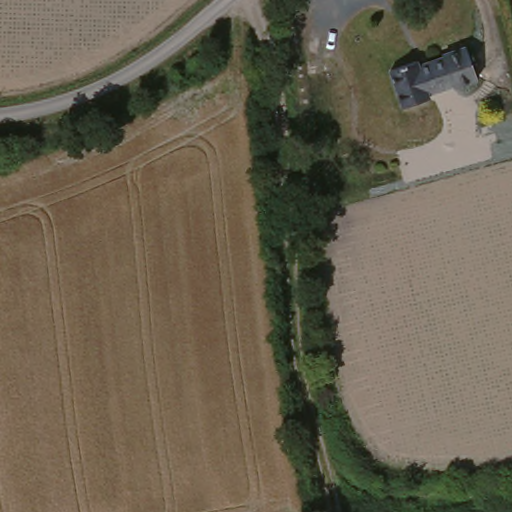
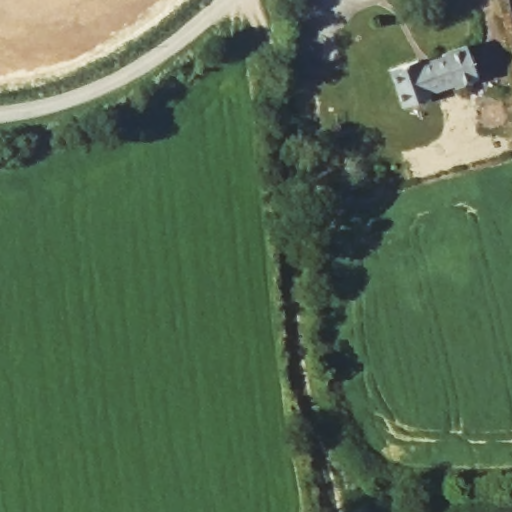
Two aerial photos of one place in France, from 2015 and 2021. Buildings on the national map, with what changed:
unchanged [(416,70),(445,61),(443,55),(466,48),(480,88),(455,95),(453,88),(425,95),(427,101),(403,108),(390,70),(413,63),(416,70)]

